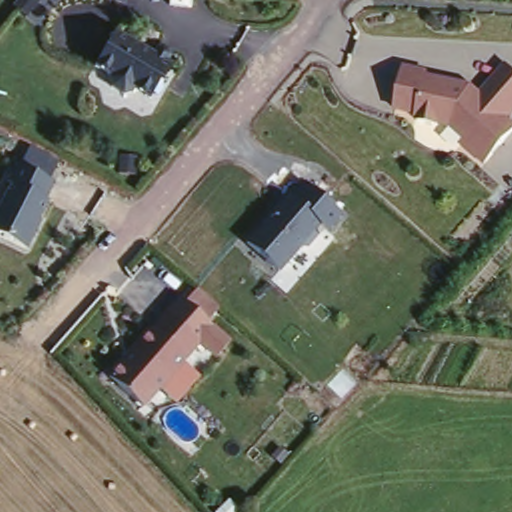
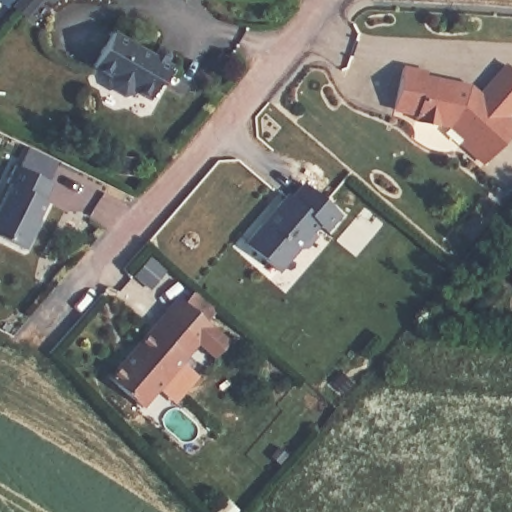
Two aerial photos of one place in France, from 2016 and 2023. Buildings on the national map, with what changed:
unchanged [(117,34),(152,54),(155,48),(169,55),(165,63),(169,66),(149,100),(132,91),(128,96),(121,97),(109,91),(108,85),(111,77),(94,67),(117,34)]
unchanged [(428,70),(428,74),(469,82),(480,91),(503,64),(512,71),(512,113),(508,118),(512,122),(512,130),(482,165),(458,145),(460,140),(440,124),(395,112),(405,66),(428,70)]
unchanged [(0,210),(10,190),(19,168),(31,149),(56,161),(51,183),(47,202),(26,250),(0,237),(0,210)]
unchanged [(289,194),(292,196),(303,182),(341,215),(324,233),(319,227),(277,273),(245,242),(289,194)]
unchanged [(110,381),(154,329),(167,315),(199,342),(185,358),(144,408),(110,381)]

